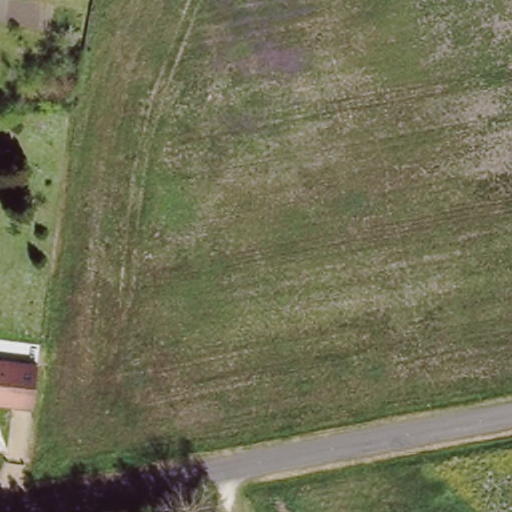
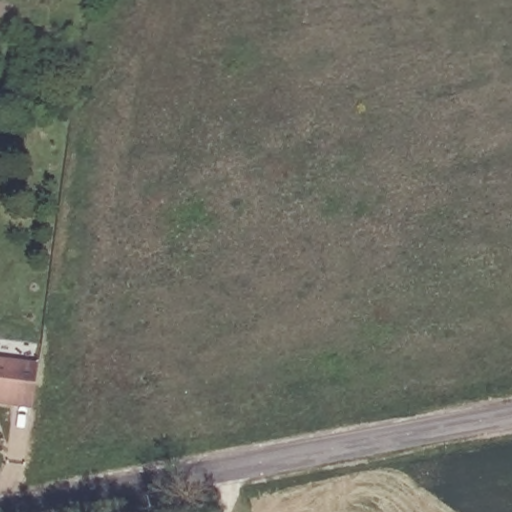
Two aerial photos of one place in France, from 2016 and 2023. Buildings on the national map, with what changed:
unchanged [(0,401),(0,356),(40,361),(34,406),(0,401)]

